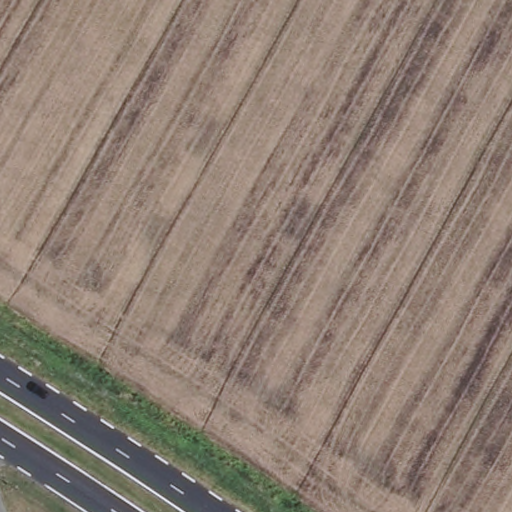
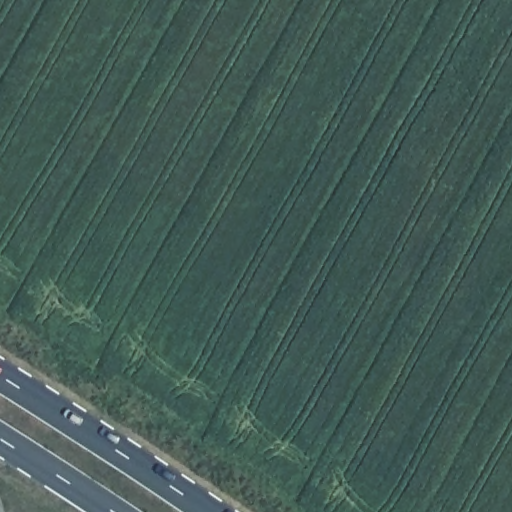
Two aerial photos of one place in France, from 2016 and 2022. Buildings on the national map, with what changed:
[]

